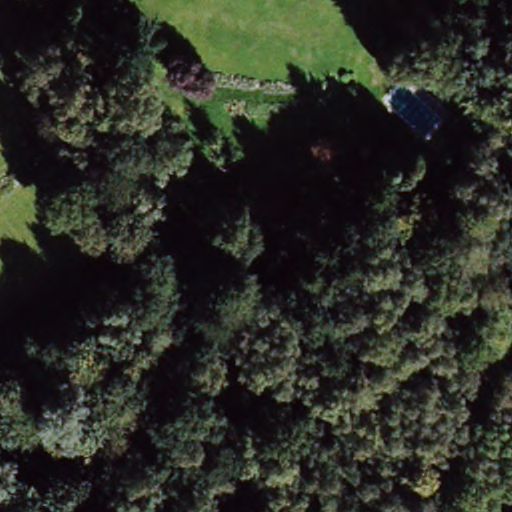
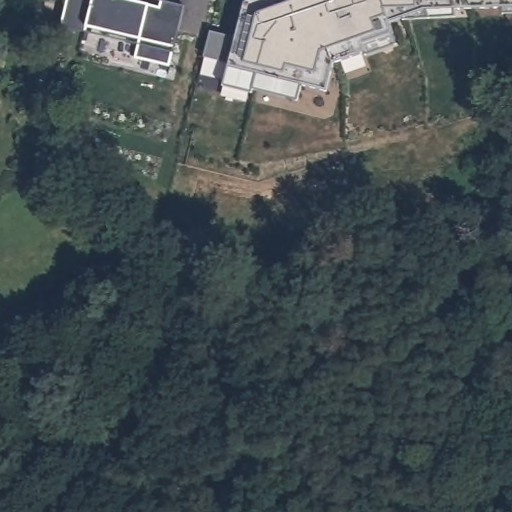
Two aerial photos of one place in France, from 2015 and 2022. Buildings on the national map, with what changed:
new [(125,0),(125,2),(158,11),(160,4),(183,9),(169,70),(134,62),(138,42),(86,30),(85,35),(60,30),(67,0),(125,0)]
new [(200,75),(205,56),(210,31),(236,38),(245,2),(251,0),(512,0),(512,14),(501,15),(500,10),(500,6),(452,7),(452,4),(453,20),(391,22),(388,24),(390,34),(360,45),(363,52),(333,61),(325,91),(301,84),(297,99),(252,87),(250,97),(221,91),(223,81),(200,75)]
new [(360,45),(390,34),(395,47),(365,58),(364,55),(360,45)]

